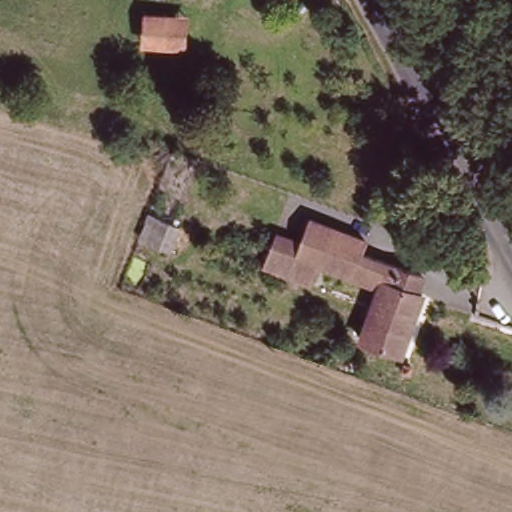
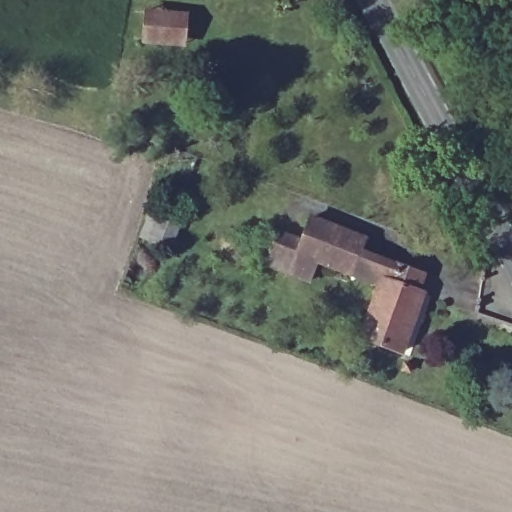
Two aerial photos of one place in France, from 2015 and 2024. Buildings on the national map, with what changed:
unchanged [(182,14),(179,43),(141,41),(145,11),(182,14)]
unchanged [(179,230),(169,252),(145,240),(155,218),(179,230)]
unchanged [(277,237),(302,245),(309,223),(365,244),(352,279),(317,265),(307,286),(262,270),(277,237)]
unchanged [(422,278),(417,295),(422,297),(402,357),(362,343),(388,266),(422,278)]

